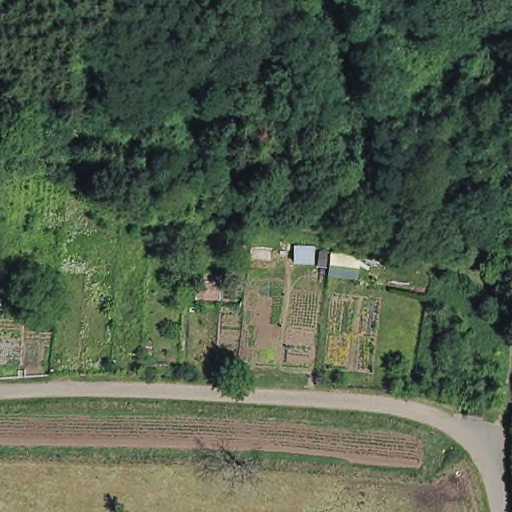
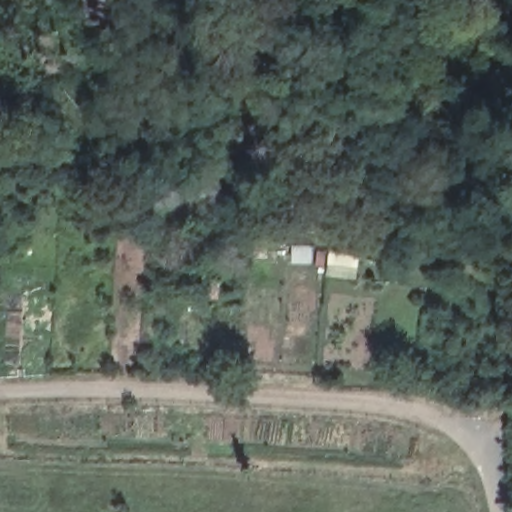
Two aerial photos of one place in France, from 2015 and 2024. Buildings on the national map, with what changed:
unchanged [(491,70),(471,75),(465,56),(485,50),(491,70)]
unchanged [(220,276),(219,294),(193,296),(193,278),(220,276)]

